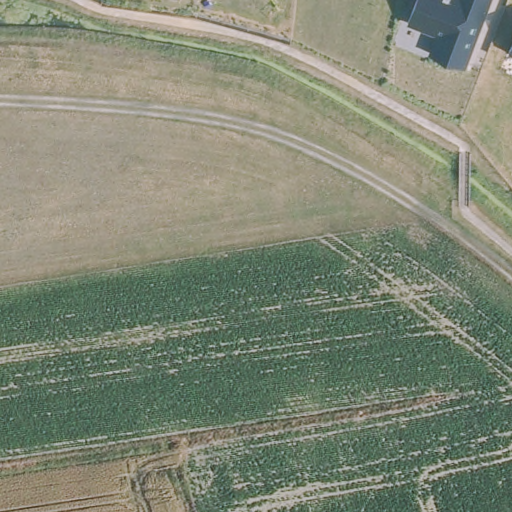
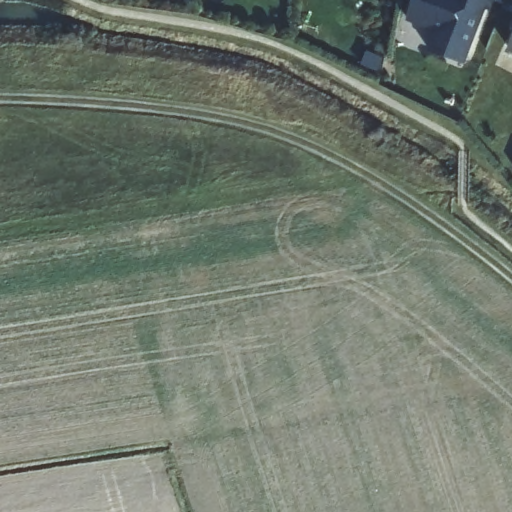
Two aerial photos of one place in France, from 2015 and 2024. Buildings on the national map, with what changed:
unchanged [(466,65),(428,53),(437,34),(407,22),(416,0),(491,0),(466,65)]
unchanged [(508,49),(512,40),(512,52),(508,49)]

